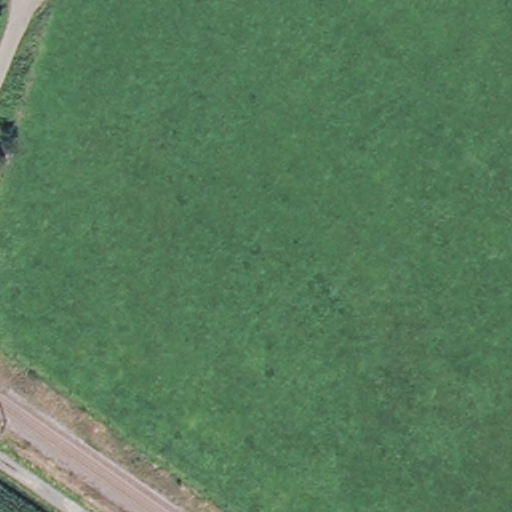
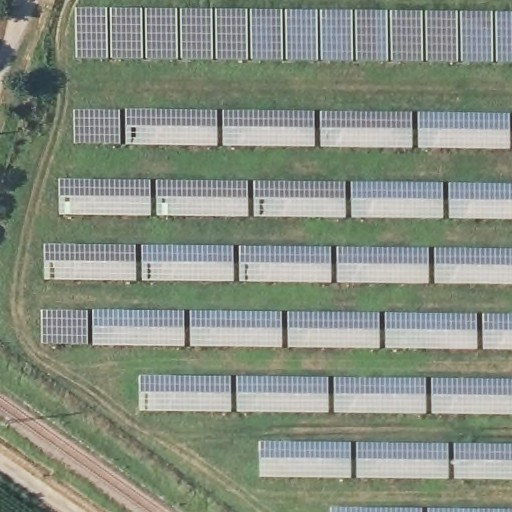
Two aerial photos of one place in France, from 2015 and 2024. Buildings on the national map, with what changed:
new [(512,21),(512,69),(79,65),(75,16),(512,21)]
new [(218,147),(127,146),(128,112),(219,113),(218,147)]
new [(225,147),(225,114),(315,114),(315,148),(225,147)]
new [(413,116),(413,149),(323,148),(323,115),(413,116)]
new [(511,117),(511,150),(421,150),(421,116),(511,117)]
new [(152,217),(74,216),(74,201),(61,201),(61,183),(152,183),(152,217)]
new [(249,218),(159,217),(159,184),(249,184),(249,218)]
new [(354,185),(444,186),(444,219),(354,218),(354,185)]
new [(512,187),(512,220),(452,219),(452,186),(512,187)]
new [(137,248),(137,282),(55,281),(55,265),(51,264),(51,281),(46,281),(46,248),(137,248)]
new [(234,249),(234,282),(144,282),(144,248),(234,249)]
new [(332,250),(332,284),(242,283),(242,249),(332,250)]
new [(429,251),(429,285),(339,284),(340,251),(429,251)]
new [(512,253),(512,285),(438,285),(438,252),(512,253)]
new [(185,313),(185,348),(119,349),(119,345),(44,345),(44,314),(185,313)]
new [(283,348),(193,347),(193,314),(283,315),(283,348)]
new [(290,349),(291,315),(380,316),(380,349),(290,349)]
new [(478,317),(478,350),(388,350),(389,316),(478,317)]
new [(491,340),(491,351),(484,351),(486,316),(512,317),(512,342),(491,340)]
new [(232,413),(142,412),(143,379),(232,379),(232,413)]
new [(400,415),(400,402),(384,402),(384,414),(337,414),(338,380),(427,381),(427,415),(400,415)]
new [(434,415),(434,382),(512,382),(512,416),(434,415)]
new [(353,446),(352,479),(262,478),(262,445),(353,446)]
new [(449,480),(359,479),(359,446),(450,447),(449,480)]
new [(512,448),(512,481),(457,480),(457,447),(512,448)]
new [(333,512),(333,511),(423,512),(333,512)]

